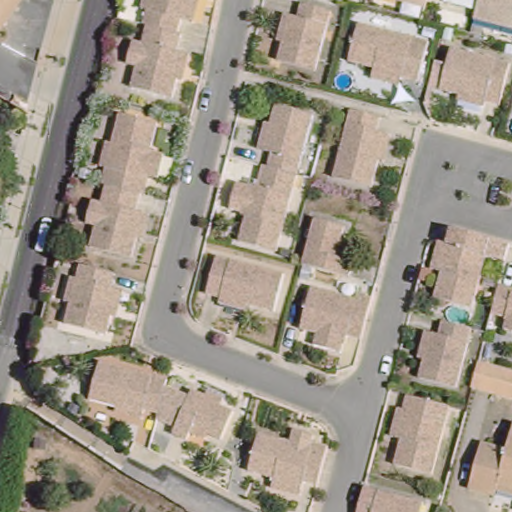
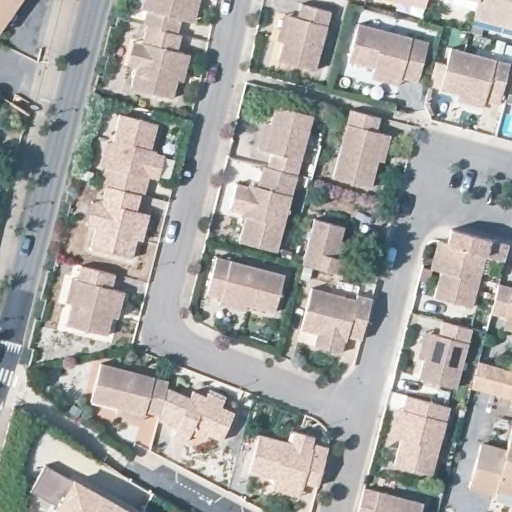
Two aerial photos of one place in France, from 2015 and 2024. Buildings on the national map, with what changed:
unchanged [(0,0),(21,0),(0,31),(0,0)]
unchanged [(196,21),(190,20),(183,19),(180,30),(151,24),(146,22),(150,10),(143,8),(145,0),(202,0),(196,21)]
unchanged [(424,6),(398,0),(427,0),(424,6)]
unchanged [(472,25),(477,2),(469,0),(512,0),(512,35),(472,25)]
unchanged [(302,4),(331,12),(322,52),(317,71),(281,62),(286,43),(278,41),(285,15),(292,16),(298,18),(302,4)]
unchanged [(380,62),(356,56),(366,20),(431,37),(421,75),(405,70),(405,73),(402,81),(378,74),(379,66),(380,62)]
unchanged [(175,96),(135,87),(140,66),(130,62),(136,41),(146,44),(151,24),(180,30),(185,32),(181,49),(188,50),(193,51),(186,76),(181,75),(175,96)]
unchanged [(445,89),(446,87),(436,85),(441,62),(451,65),(455,48),(512,63),(504,97),(503,104),(487,100),(485,107),(462,100),(464,94),(445,89)]
unchanged [(265,148),(271,122),(276,124),(281,107),(319,117),(304,174),(273,166),(277,151),(270,150),(265,148)]
unchanged [(382,132),(390,135),(395,136),(388,160),(383,160),(376,185),(340,176),(339,175),(356,110),(385,117),(382,132)]
unchanged [(164,176),(156,175),(151,192),(146,191),(114,183),(110,181),(114,164),(107,162),(113,137),(120,139),(127,112),(163,121),(156,149),(163,150),(170,152),(164,176)]
unchanged [(238,209),(246,184),(255,185),(261,187),(267,165),(273,166),(304,174),(283,251),(246,242),(253,211),(249,211),(238,209)]
unchanged [(140,255),(98,244),(103,225),(95,223),(101,197),(110,200),(114,183),(146,191),(143,205),(151,207),(156,209),(151,231),(146,230),(140,255)]
unchanged [(348,260),(355,261),(351,277),(307,266),(319,220),(349,227),(346,239),(352,240),(348,260)]
unchanged [(453,227),(493,239),(510,243),(506,260),(489,255),(476,304),(441,295),(448,268),(440,266),(434,265),(441,239),(446,240),(450,241),(453,227)]
unchanged [(209,295),(218,258),(286,276),(275,314),(250,306),(248,313),(222,305),(224,300),(209,295)]
unchanged [(121,316),(115,315),(109,338),(68,327),(73,303),(68,302),(73,278),(79,280),(83,266),(116,275),(113,288),(121,290),(128,292),(121,316)]
unchanged [(497,311),(504,283),(512,285),(512,315),(497,311)]
unchanged [(313,349),(316,338),(296,333),(308,289),(355,301),(357,295),(371,299),(360,342),(346,339),(344,346),(341,356),(313,349)]
unchanged [(440,322),(470,331),(454,390),(419,379),(424,361),(418,359),(424,332),(431,335),(436,336),(440,322)]
unchanged [(510,331),(512,324),(512,332),(510,331)]
unchanged [(91,398),(101,360),(168,377),(161,410),(147,407),(146,410),(143,418),(120,411),(121,405),(91,398)]
unchanged [(471,391),(479,362),(512,373),(512,402),(471,391)]
unchanged [(187,440),(184,447),(168,439),(188,395),(203,401),(206,397),(221,405),(218,412),(230,418),(217,445),(206,440),(202,448),(187,440)]
unchanged [(448,409),(430,475),(395,466),(402,441),(397,440),(392,439),(399,411),(404,412),(408,398),(448,409)]
unchanged [(271,486),(274,479),(275,475),(251,468),(263,430),(291,438),(296,427),(315,432),(314,440),(328,444),(318,482),(306,479),(303,488),(301,495),(271,486)]
unchanged [(497,495),(471,488),(482,445),(508,451),(512,437),(512,496),(498,491),(497,495)]
new [(29,490),(44,463),(130,512),(54,512),(58,506),(29,490)]
unchanged [(422,501),(419,512),(356,512),(364,485),(422,501)]

